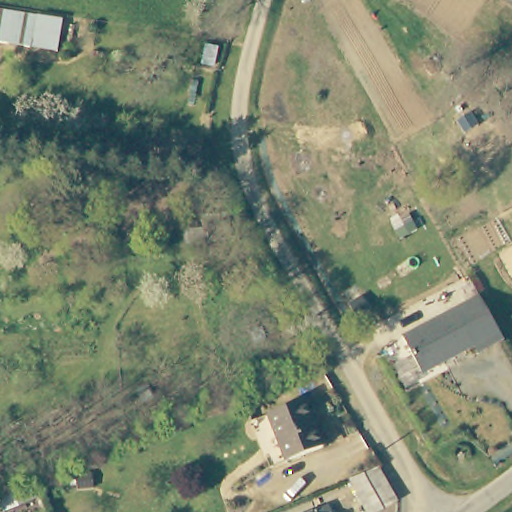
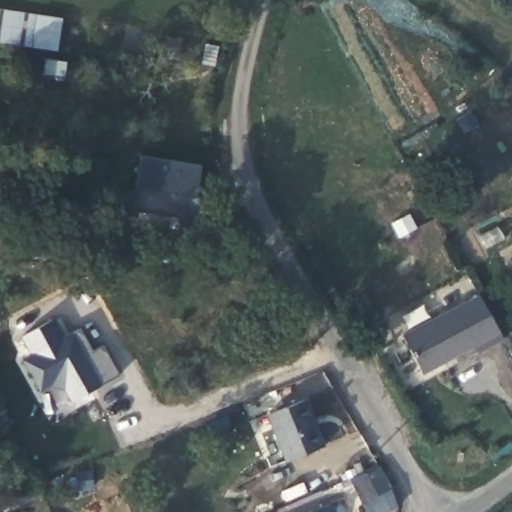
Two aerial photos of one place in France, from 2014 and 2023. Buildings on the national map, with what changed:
unchanged [(55,48),(32,45),(0,40),(0,9),(35,15),(58,19),(55,48)]
new [(200,165),(197,195),(209,229),(182,232),(177,217),(136,210),(140,156),(200,165)]
unchanged [(501,343),(474,358),(470,352),(420,380),(399,344),(477,300),(501,343)]
new [(60,320),(70,339),(86,330),(95,346),(88,350),(92,356),(109,347),(125,376),(77,404),(69,390),(56,386),(45,393),(28,362),(37,357),(27,339),(60,320)]
unchanged [(331,442),(277,465),(257,417),(312,395),(331,442)]
unchanged [(385,510),(381,512),(363,512),(355,495),(386,480),(390,489),(397,504),(385,510)]
unchanged [(328,512),(320,512),(327,508),(328,512)]

